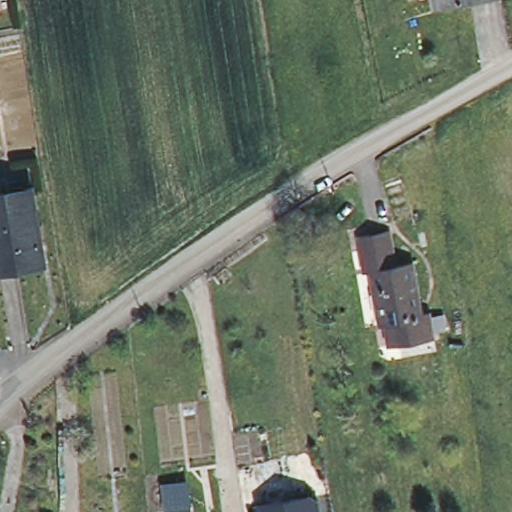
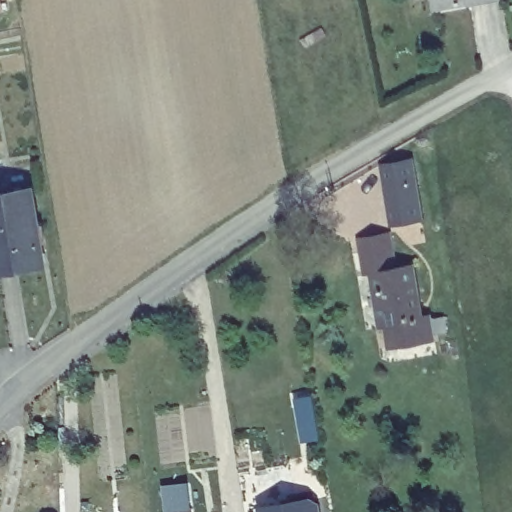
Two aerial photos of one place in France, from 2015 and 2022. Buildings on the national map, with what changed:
unchanged [(439,12),(437,0),(503,0),(439,12)]
new [(425,220),(390,227),(379,163),(414,156),(425,220)]
unchanged [(31,187),(43,262),(0,269),(0,193),(31,187)]
unchanged [(390,350),(386,327),(381,328),(371,276),(365,277),(358,240),(389,234),(395,269),(408,267),(413,266),(419,300),(416,300),(419,318),(428,317),(433,342),(422,344),(390,350)]
new [(167,512),(165,512),(161,485),(188,482),(192,512),(167,512)]
unchanged [(311,497),(317,501),(319,512),(263,512),(262,505),(281,502),(311,497)]

